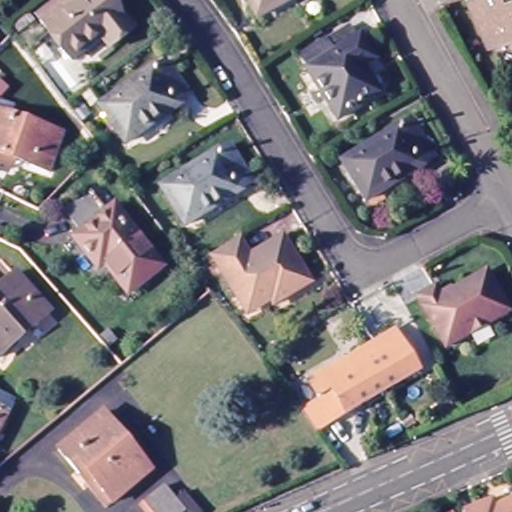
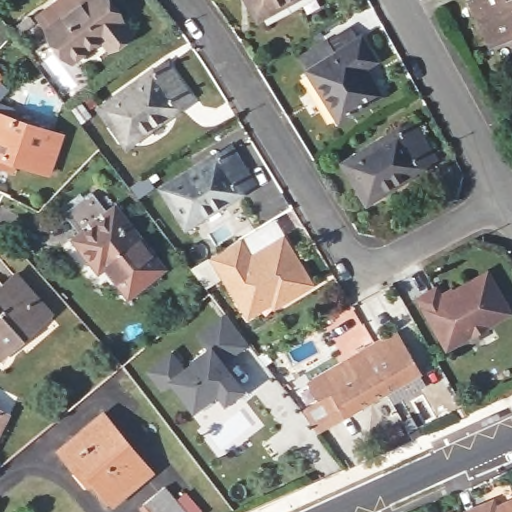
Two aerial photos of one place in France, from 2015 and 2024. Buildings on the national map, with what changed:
unchanged [(105,56),(96,45),(65,68),(31,23),(61,0),(94,0),(125,40),(105,56)]
unchanged [(250,0),(296,0),(258,19),(250,0)]
unchanged [(464,1),(465,0),(512,0),(512,39),(497,45),(486,50),(473,20),(464,1)]
unchanged [(370,74),(387,104),(347,126),(315,76),(310,80),(301,63),(323,51),(358,30),(367,46),(381,68),(370,74)]
unchanged [(195,99),(131,146),(105,111),(170,64),(195,99)]
unchanged [(0,103),(0,86),(5,91),(0,103)]
unchanged [(82,123),(76,128),(65,113),(70,109),(82,123)]
unchanged [(5,169),(0,167),(0,115),(66,139),(51,177),(19,166),(15,174),(5,169)]
unchanged [(440,163),(369,203),(348,165),(419,125),(440,163)]
unchanged [(257,190),(190,230),(166,190),(233,150),(257,190)]
unchanged [(104,220),(111,214),(158,275),(125,302),(101,272),(95,278),(70,246),(78,241),(64,221),(88,201),(104,220)]
unchanged [(271,294),(247,308),(244,303),(214,252),(230,243),(242,236),(252,254),(286,234),(311,277),(282,294),(274,299),(271,294)]
unchanged [(440,288),(446,298),(492,272),(512,308),(512,313),(450,347),(423,297),(440,288)]
unchanged [(52,317),(0,362),(0,293),(18,278),(52,317)]
new [(168,360),(180,377),(191,369),(190,367),(207,353),(197,341),(224,321),(245,347),(218,368),(239,395),(222,407),(214,396),(191,414),(169,386),(160,393),(147,377),(168,360)]
unchanged [(416,372),(334,424),(309,386),(345,363),(342,358),(350,354),(353,358),(391,334),(416,372)]
unchanged [(0,430),(0,410),(8,414),(0,430)]
unchanged [(75,476),(66,465),(57,453),(70,443),(104,417),(105,418),(151,475),(111,507),(90,481),(84,486),(75,476)]
unchanged [(140,507),(163,489),(172,501),(180,494),(196,512),(144,512),(140,507)]
unchanged [(512,503),(512,512),(492,512),(512,503)]
unchanged [(488,506),(491,512),(475,512),(488,506)]
unchanged [(455,509),(457,512),(447,512),(455,509)]

